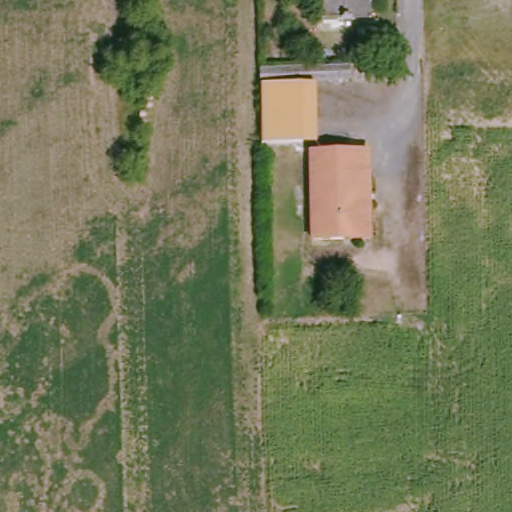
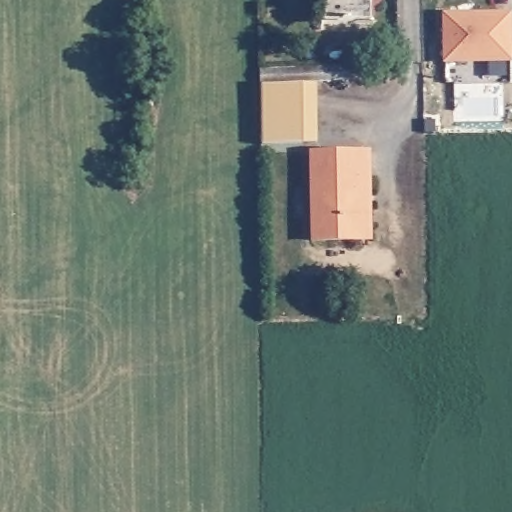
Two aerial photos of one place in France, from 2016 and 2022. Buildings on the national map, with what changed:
unchanged [(370,12),(322,12),(322,0),(371,0),(370,12)]
new [(512,28),(512,62),(443,63),(443,12),(512,11),(512,28)]
unchanged [(350,82),(305,82),(263,81),(263,65),(350,66),(350,82)]
unchanged [(305,82),(303,142),(264,141),(263,115),(263,81),(305,82)]
unchanged [(372,151),(372,180),(367,180),(367,242),(317,243),(317,151),(372,151)]

